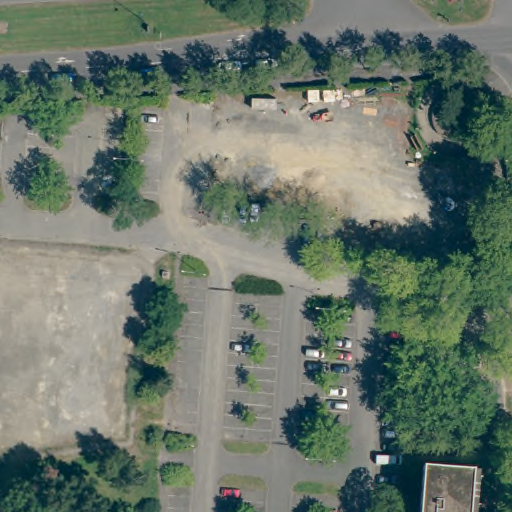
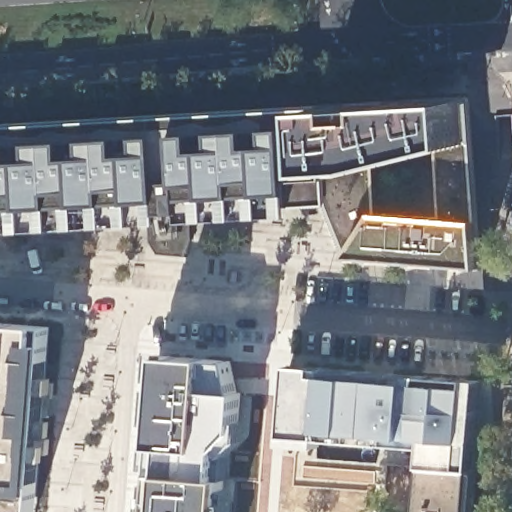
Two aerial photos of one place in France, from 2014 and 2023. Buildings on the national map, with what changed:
new [(355,105),(386,104),(468,99),(471,140),(475,222),(480,266),(349,256),(327,204),(289,205),(288,216),(0,232),(0,125),(322,108),(355,105)]
demolished [(401,166),(217,151),(221,102),(312,109),(404,116),(401,161),(401,166)]
demolished [(445,254),(434,252),(395,250),(400,171),(401,166),(401,161),(447,166),(451,166),(445,254)]
demolished [(60,315),(52,314),(56,263),(60,263),(108,267),(101,348),(112,350),(113,345),(131,346),(125,426),(73,422),(73,420),(41,418),(46,375),(0,370),(0,317),(59,322),(60,315)]
new [(48,328),(45,345),(33,493),(35,512),(0,512),(0,323),(40,326),(48,328)]
new [(152,507),(144,507),(146,485),(154,485),(157,446),(149,445),(151,421),(159,422),(159,413),(151,413),(155,364),(163,365),(164,356),(231,362),(229,385),(236,385),(242,394),(239,423),(244,424),(242,442),(229,458),(226,481),(225,481),(225,490),(232,491),(231,512),(152,512),(152,507)]
new [(424,465),(388,465),(384,493),(294,486),(297,458),(283,456),(285,443),(290,365),(482,380),(469,477),(420,473),(424,465)]
demolished [(41,418),(27,416),(23,461),(0,460),(0,370),(46,375),(41,418)]
unchanged [(420,473),(469,477),(466,512),(417,512),(420,473)]

